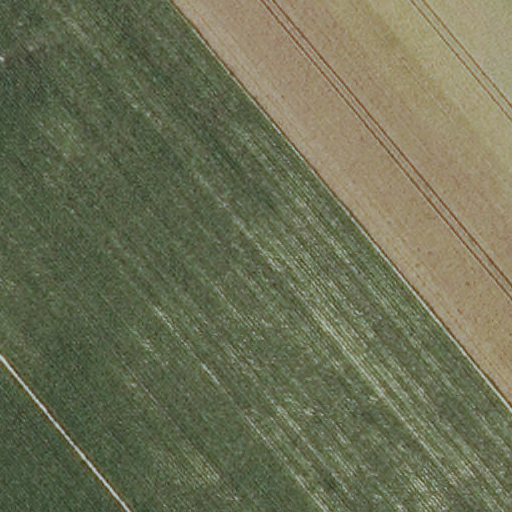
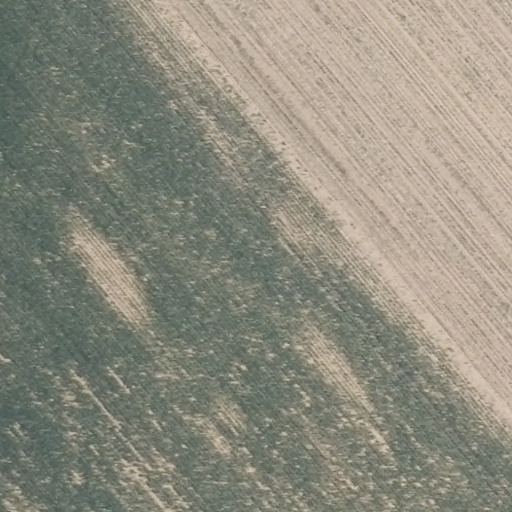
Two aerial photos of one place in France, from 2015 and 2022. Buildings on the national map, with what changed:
[]

